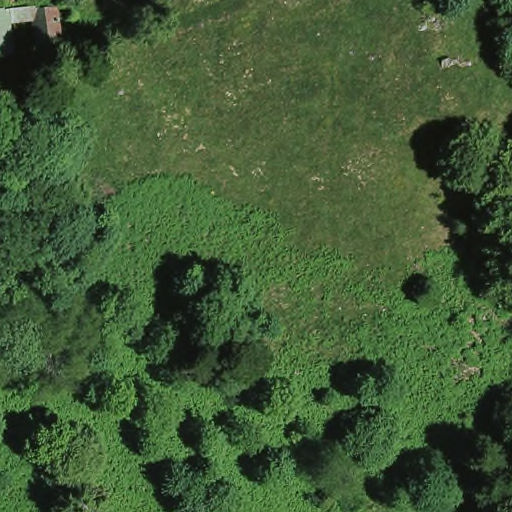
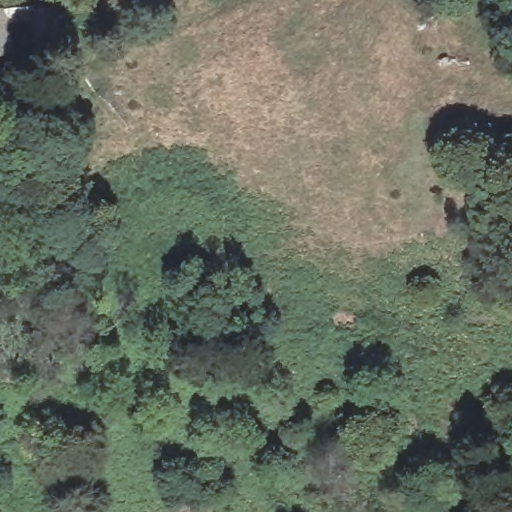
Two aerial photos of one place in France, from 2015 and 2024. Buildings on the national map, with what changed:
unchanged [(44,0),(67,0),(69,32),(46,32),(44,0)]
unchanged [(0,57),(0,10),(10,10),(12,33),(16,32),(17,55),(0,57)]

